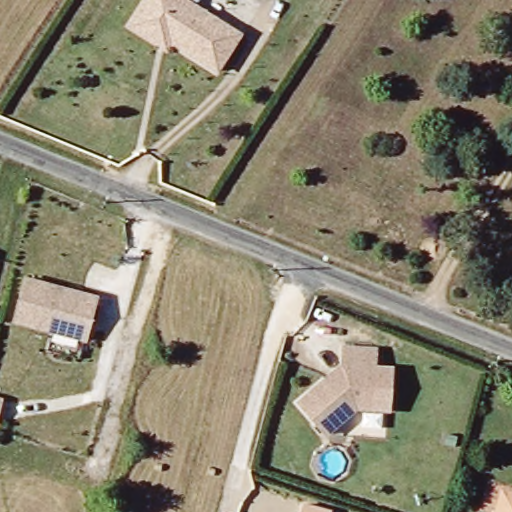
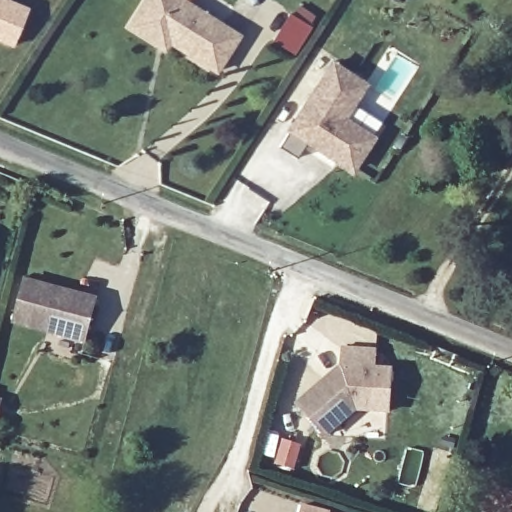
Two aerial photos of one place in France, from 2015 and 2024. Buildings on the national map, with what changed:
new [(0,41),(0,0),(13,0),(30,7),(14,47),(0,41)]
unchanged [(134,28),(151,0),(195,0),(192,4),(245,34),(223,71),(174,43),(170,50),(162,45),(134,28)]
new [(332,60),(367,83),(347,117),(378,135),(352,175),(306,144),(297,157),(280,144),(332,60)]
unchanged [(15,323),(26,280),(82,295),(97,300),(95,306),(86,343),(15,323)]
unchanged [(377,348),(377,366),(394,368),(392,410),(358,407),(327,434),(300,401),(329,377),(345,364),(346,346),(377,348)]
unchanged [(496,495),(512,499),(512,512),(492,512),(496,495)]

